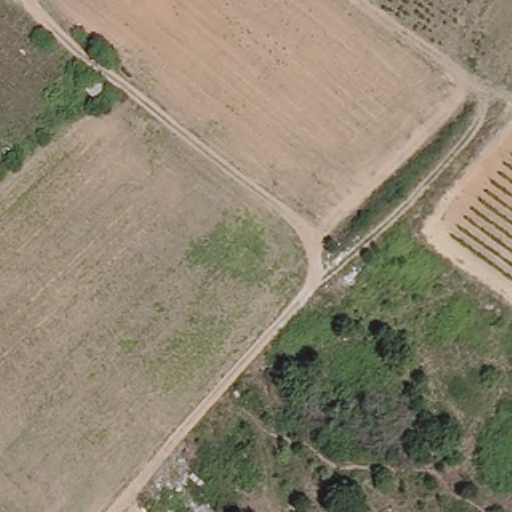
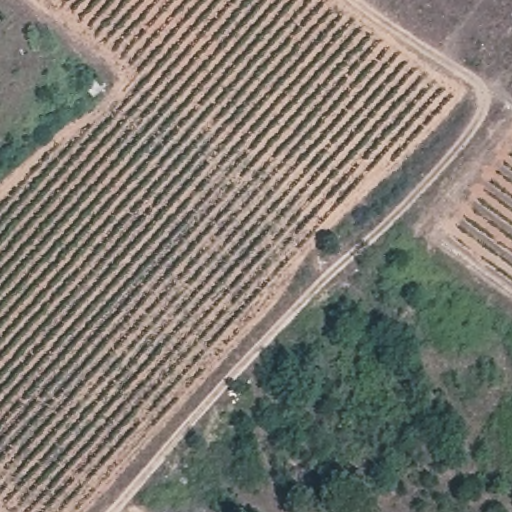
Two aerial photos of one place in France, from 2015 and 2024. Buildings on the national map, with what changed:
unchanged [(93,81),(100,91),(86,99),(82,90),(93,81)]

